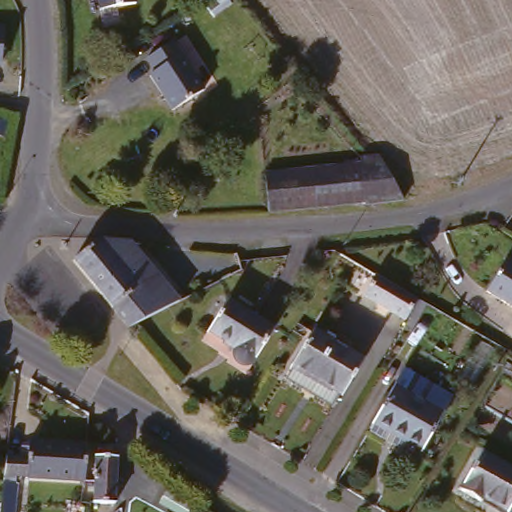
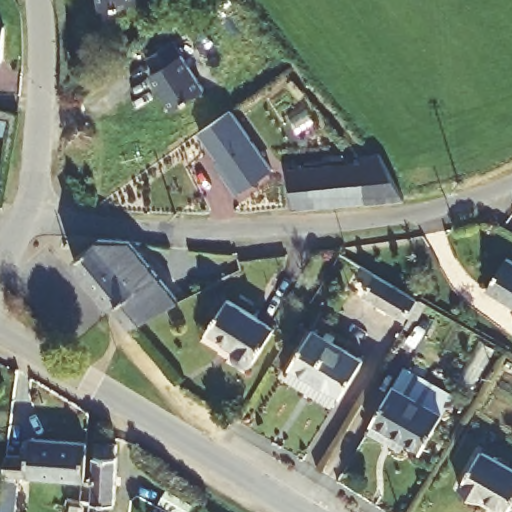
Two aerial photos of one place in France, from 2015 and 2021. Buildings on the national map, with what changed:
unchanged [(135,0),(136,8),(92,7),(92,0),(135,0)]
unchanged [(0,28),(5,29),(4,65),(0,65),(0,28)]
unchanged [(172,107),(141,63),(175,40),(204,84),(172,107)]
new [(236,197),(213,164),(219,160),(199,134),(232,113),(272,170),(236,197)]
unchanged [(358,167),(367,166),(377,165),(391,189),(403,210),(366,212),(364,210),(357,211),(294,220),(287,178),(329,176),(359,174),(358,167)]
unchanged [(174,310),(126,334),(66,256),(67,245),(72,239),(126,243),(174,310)]
unchanged [(507,266),(512,269),(512,313),(487,298),(507,266)]
unchanged [(426,307),(413,330),(409,327),(404,337),(384,327),(389,318),(360,301),(374,275),(426,307)]
unchanged [(237,306),(281,331),(258,371),(241,361),(245,352),(218,337),(237,306)]
unchanged [(360,365),(340,400),(336,400),(331,409),(327,411),(280,384),(289,370),(284,367),(306,334),(360,365)]
unchanged [(403,385),(451,413),(434,441),(419,433),(414,442),(384,423),(403,385)]
unchanged [(11,504),(11,485),(15,457),(37,460),(38,443),(96,448),(94,486),(82,485),(31,481),(30,487),(27,487),(24,512),(10,512),(11,504)]
unchanged [(103,487),(104,447),(124,448),(124,460),(126,460),(124,506),(103,505),(103,487)]
unchanged [(512,473),(512,512),(499,512),(487,506),(484,511),(461,498),(483,456),(512,473)]

